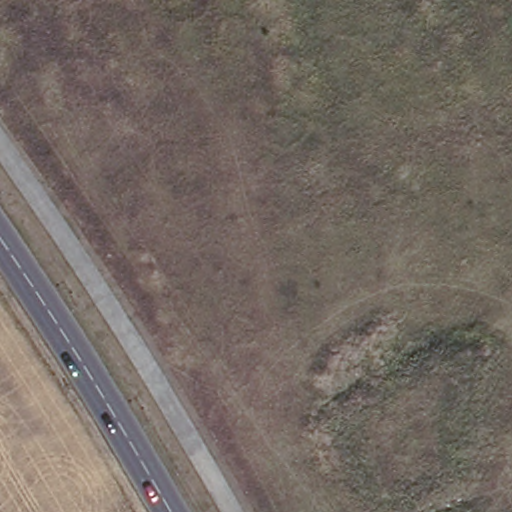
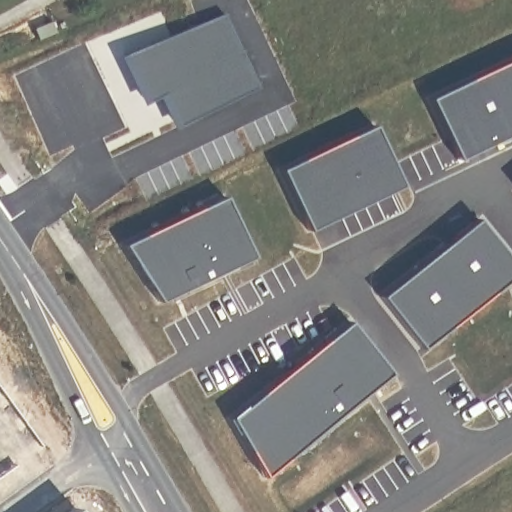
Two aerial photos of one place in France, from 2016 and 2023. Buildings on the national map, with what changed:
new [(222,14),(255,85),(178,126),(161,95),(146,101),(124,55),(222,14)]
new [(512,59),(512,132),(458,159),(430,99),(512,59)]
new [(373,126),(399,182),(308,228),(279,171),(373,126)]
new [(222,195),(250,255),(158,299),(123,244),(222,195)]
new [(474,220),(512,264),(512,275),(424,348),(381,296),(474,220)]
new [(349,322),(390,374),(264,476),(231,418),(349,322)]
new [(76,512),(64,512),(72,506),(76,512)]

